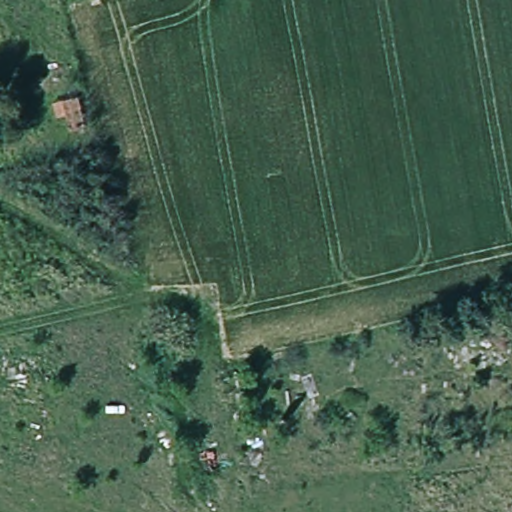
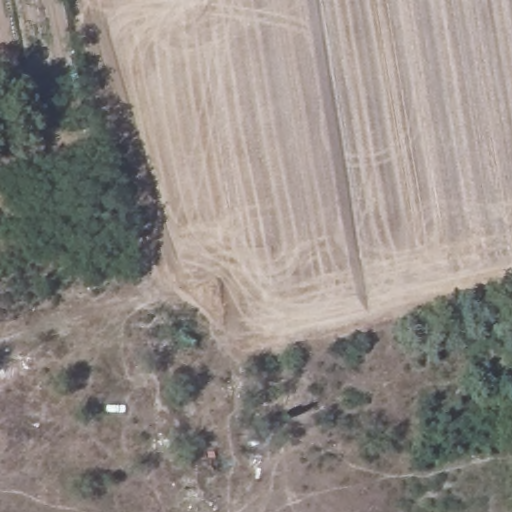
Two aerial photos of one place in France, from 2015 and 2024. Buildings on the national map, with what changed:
unchanged [(61,98),(75,95),(79,118),(66,120),(61,98)]

